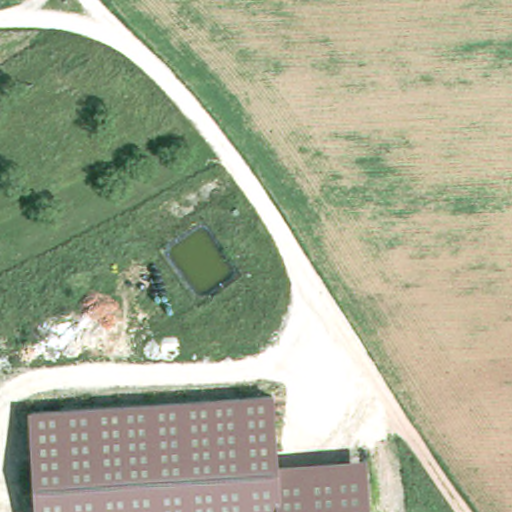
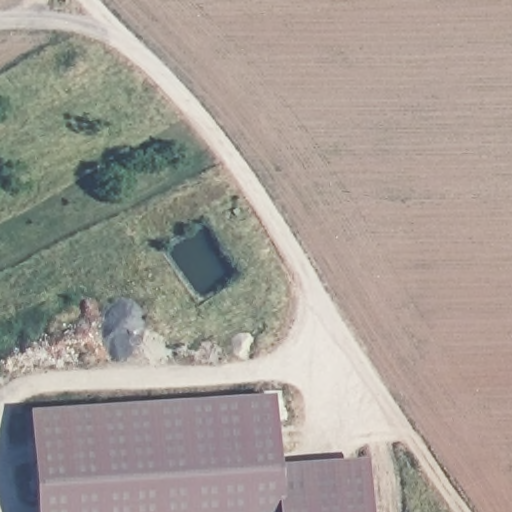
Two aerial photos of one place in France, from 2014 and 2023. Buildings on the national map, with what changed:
unchanged [(273,394),(279,464),(367,457),(371,512),(35,512),(29,408),(273,394)]

